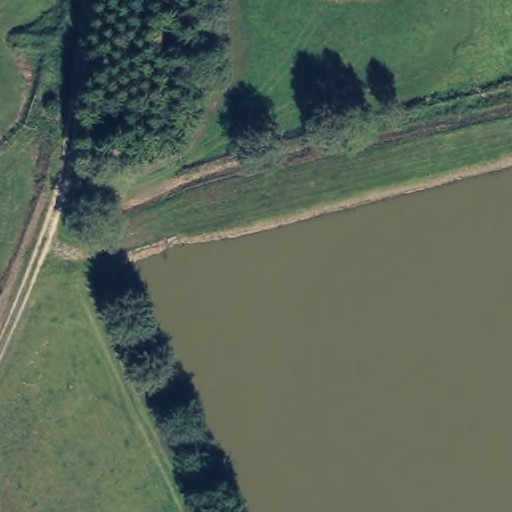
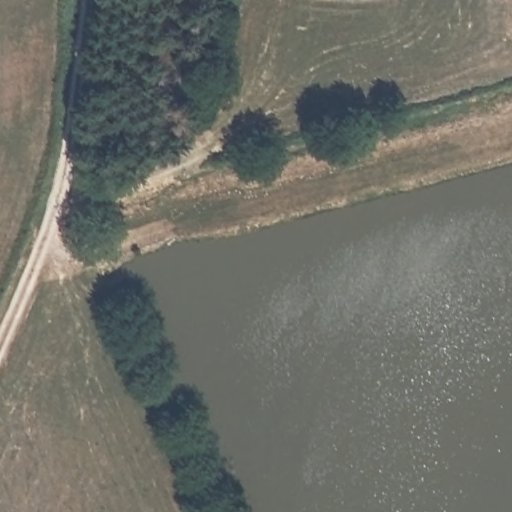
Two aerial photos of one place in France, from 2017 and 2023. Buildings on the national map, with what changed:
[]

